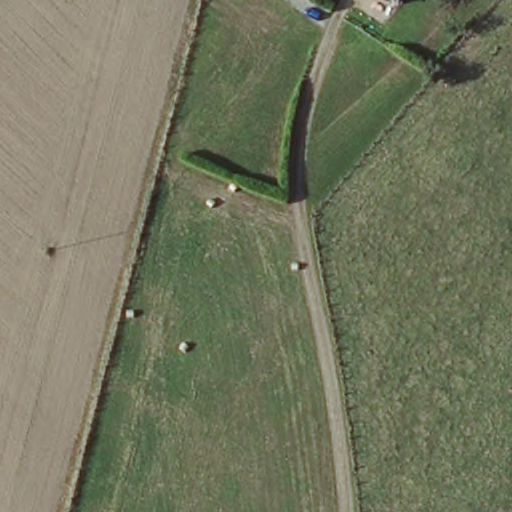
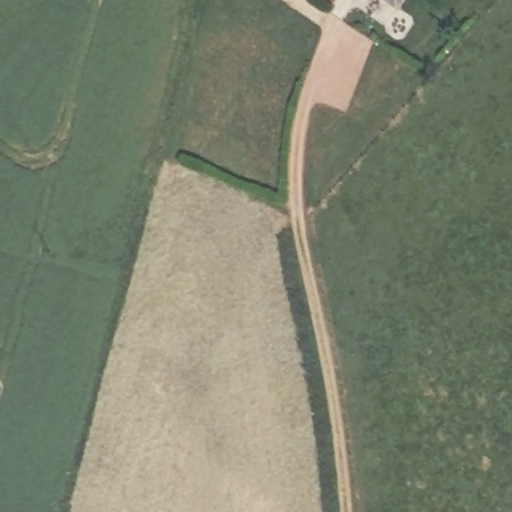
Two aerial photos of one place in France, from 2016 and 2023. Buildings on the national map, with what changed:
unchanged [(400,12),(381,0),(407,0),(400,12)]

